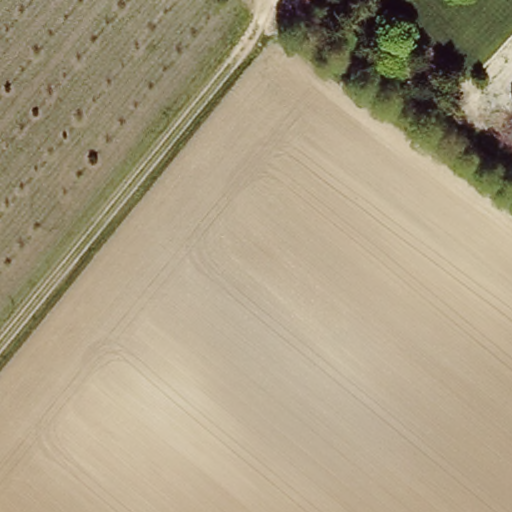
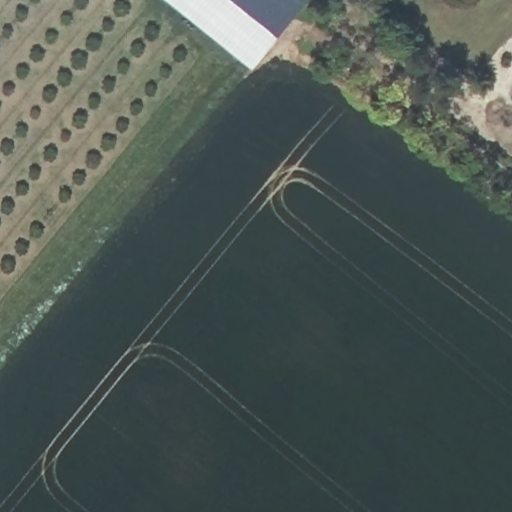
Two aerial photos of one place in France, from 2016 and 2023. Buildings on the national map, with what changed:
new [(171,0),(302,0),(250,65),(171,0)]
unchanged [(512,99),(512,106),(508,102),(512,99)]

